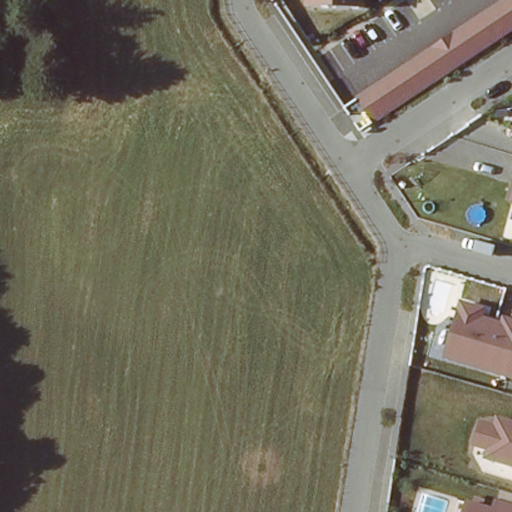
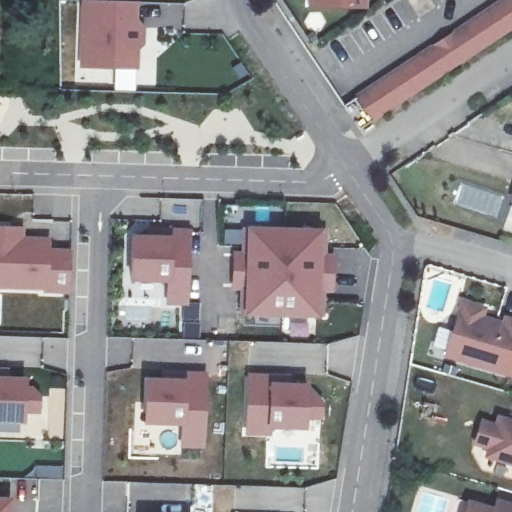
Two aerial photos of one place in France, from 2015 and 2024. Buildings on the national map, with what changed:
new [(141,69),(81,68),(81,0),(142,0),(141,69)]
unchanged [(369,8),(309,8),(309,0),(369,0),(369,8)]
unchanged [(352,97),(501,0),(512,0),(512,32),(371,123),(352,97)]
unchanged [(512,194),(512,200),(510,199),(512,194)]
new [(326,225),(324,318),(248,317),(248,292),(231,292),(230,250),(250,250),(251,222),(326,225)]
new [(23,228),(23,239),(50,240),(51,250),(71,251),(71,293),(44,292),(44,287),(0,286),(0,227),(23,228)]
new [(193,234),(190,307),(166,306),(166,278),(134,278),(135,232),(193,234)]
unchanged [(482,315),(501,321),(502,314),(512,317),(512,379),(443,359),(460,301),(486,307),(482,315)]
new [(185,376),(185,371),(213,372),(212,451),(182,450),(183,423),(148,422),(150,376),(185,376)]
new [(273,372),(273,381),(313,381),(315,402),(325,402),(325,431),(272,431),(272,438),(246,437),(247,372),(273,372)]
new [(31,375),(30,432),(0,431),(0,374),(31,375)]
unchanged [(496,413),(512,418),(512,467),(485,460),(487,450),(473,446),(480,419),(493,422),(496,413)]
new [(16,512),(0,512),(0,496),(16,496),(16,512)]
unchanged [(492,505),(494,499),(512,504),(512,512),(464,512),(467,499),(492,505)]

